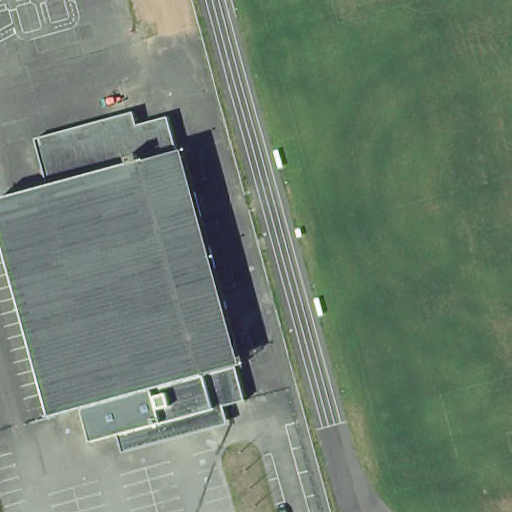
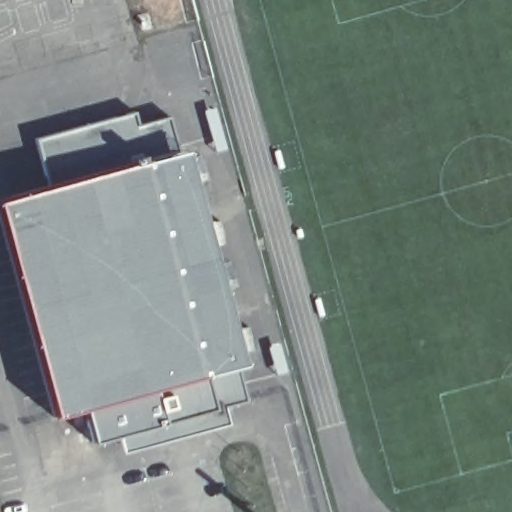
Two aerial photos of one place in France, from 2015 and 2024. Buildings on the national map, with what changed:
unchanged [(138,124),(146,158),(48,185),(35,137),(133,110),(138,124)]
unchanged [(146,158),(138,124),(168,115),(178,149),(238,364),(247,399),(216,408),(206,373),(146,158)]
unchanged [(206,373),(83,405),(54,414),(0,216),(0,199),(48,185),(146,158),(206,373)]
unchanged [(216,408),(218,416),(166,430),(163,422),(92,441),(83,405),(206,373),(216,408)]

